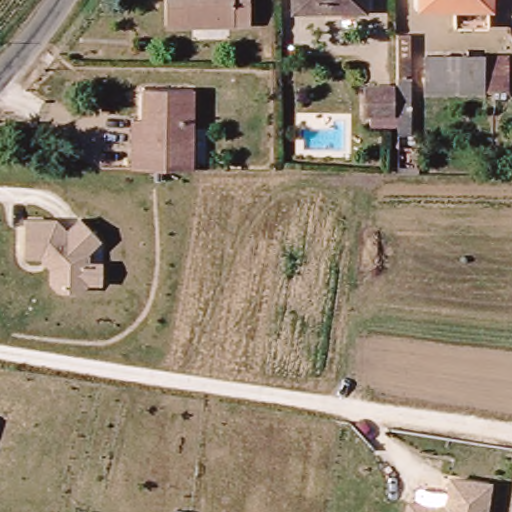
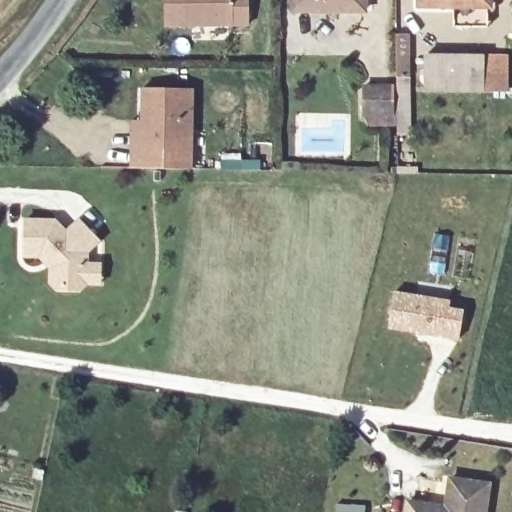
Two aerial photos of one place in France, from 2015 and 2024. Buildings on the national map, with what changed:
unchanged [(162,0),(244,0),(244,24),(162,25),(162,0)]
unchanged [(289,10),(289,0),(360,0),(360,8),(289,10)]
unchanged [(490,0),(489,1),(473,0),(460,0),(490,0)]
unchanged [(435,55),(480,55),(487,55),(486,91),(478,90),(435,91),(435,55)]
unchanged [(393,120),(393,81),(407,82),(407,120),(393,120)]
unchanged [(363,114),(363,83),(387,84),(387,114),(363,114)]
unchanged [(152,149),(140,150),(140,133),(141,85),(191,85),(191,169),(152,169),(152,149)]
unchanged [(48,267),(40,258),(20,257),(21,217),(55,217),(66,227),(77,216),(101,239),(89,250),(89,260),(102,262),(101,283),(89,283),(83,290),(56,289),(48,282),(48,267)]
new [(391,289),(451,299),(450,305),(464,309),(459,341),(385,327),(391,289)]
unchanged [(405,499),(444,504),(448,475),(494,482),(489,512),(403,512),(405,499)]

